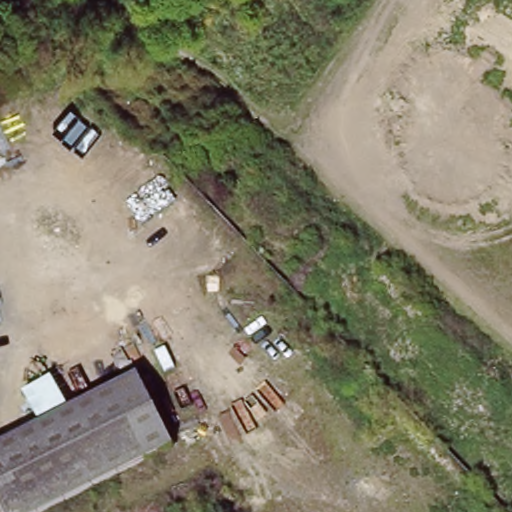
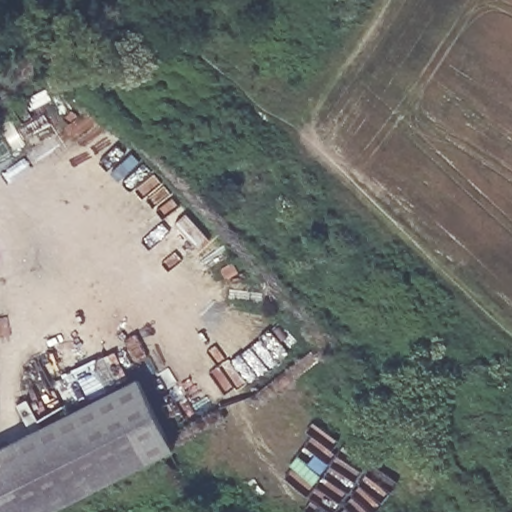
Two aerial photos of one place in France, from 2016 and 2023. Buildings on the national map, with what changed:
unchanged [(178,448),(57,512),(5,512),(0,502),(0,458),(145,382),(178,448)]

